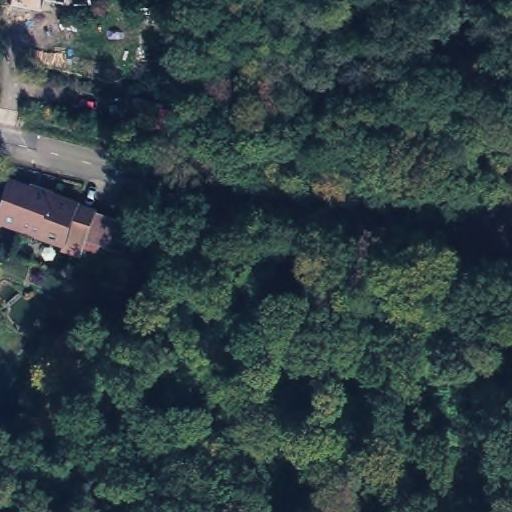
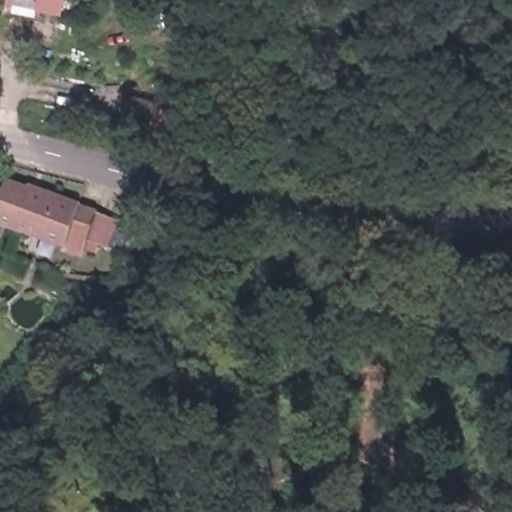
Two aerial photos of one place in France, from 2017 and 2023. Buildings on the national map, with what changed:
unchanged [(6,5),(7,0),(38,0),(35,10),(6,5)]
unchanged [(59,0),(67,0),(67,1),(59,0)]
unchanged [(145,120),(145,140),(115,137),(116,117),(145,120)]
unchanged [(62,251),(63,243),(12,228),(0,224),(0,194),(2,185),(94,210),(93,212),(103,215),(78,255),(62,251)]

